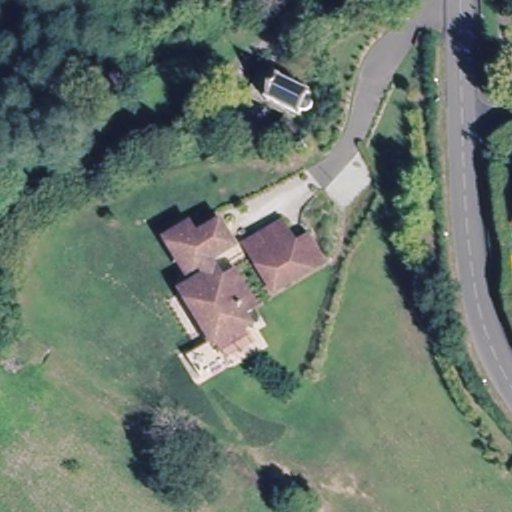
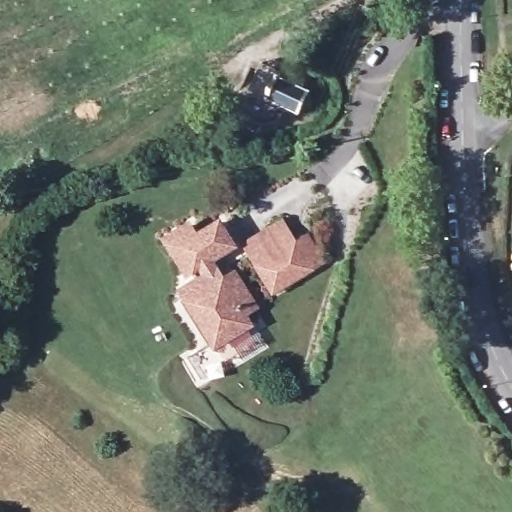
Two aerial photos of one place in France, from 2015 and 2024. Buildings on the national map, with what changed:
unchanged [(312,119),(279,100),(274,106),(257,94),(277,62),(294,71),(293,76),(327,95),(312,119)]
unchanged [(243,285),(245,283),(255,302),(244,308),(253,319),(216,342),(182,283),(203,270),(197,260),(189,265),(168,231),(191,219),(197,230),(223,215),(238,238),(210,255),(225,277),(235,269),(243,285)]
unchanged [(295,237),(307,230),(321,254),(274,285),(247,240),(281,217),(295,237)]

